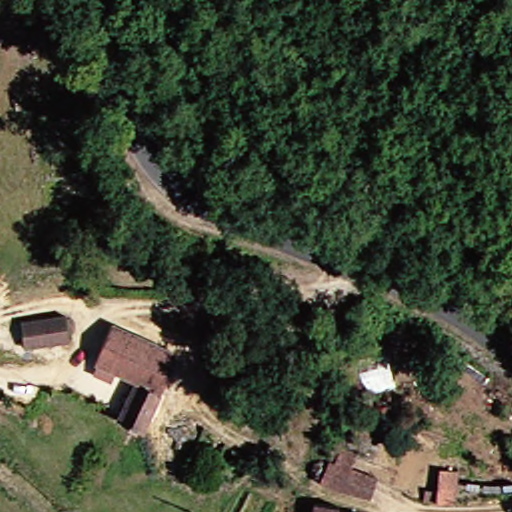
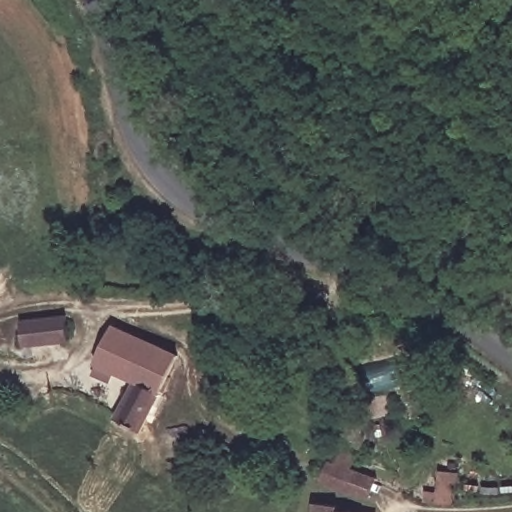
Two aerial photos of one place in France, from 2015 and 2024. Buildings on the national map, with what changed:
unchanged [(70,315),(72,340),(23,345),(18,321),(70,315)]
unchanged [(143,427),(115,416),(134,383),(99,362),(117,330),(183,359),(143,427)]
unchanged [(323,455),(337,453),(383,475),(385,500),(355,494),(318,472),(323,455)]
unchanged [(431,505),(433,478),(444,480),(444,471),(458,472),(463,512),(446,508),(431,505)]
unchanged [(346,507),(368,510),(368,512),(319,512),(321,505),(346,507)]

